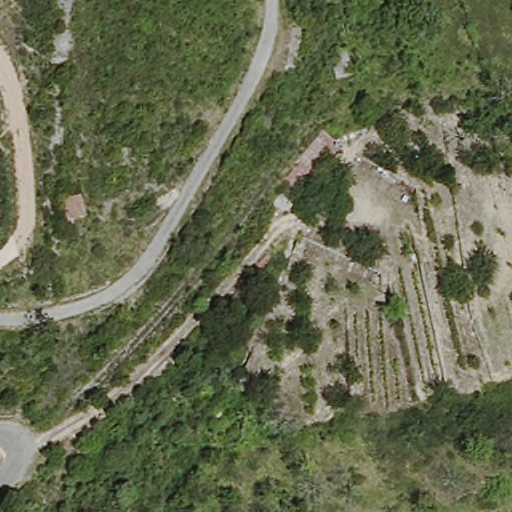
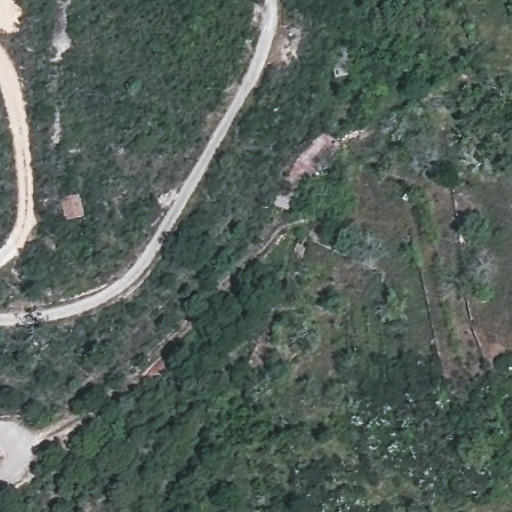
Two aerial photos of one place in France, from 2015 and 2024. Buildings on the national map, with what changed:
unchanged [(314,174),(292,191),(280,176),(326,125),(339,140),(314,174)]
unchanged [(85,195),(86,224),(62,224),(62,199),(85,195)]

